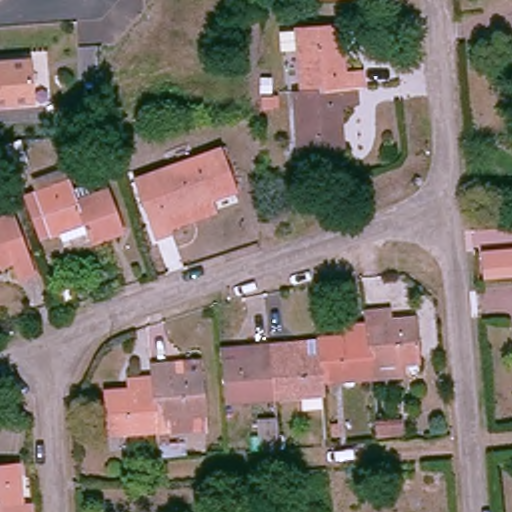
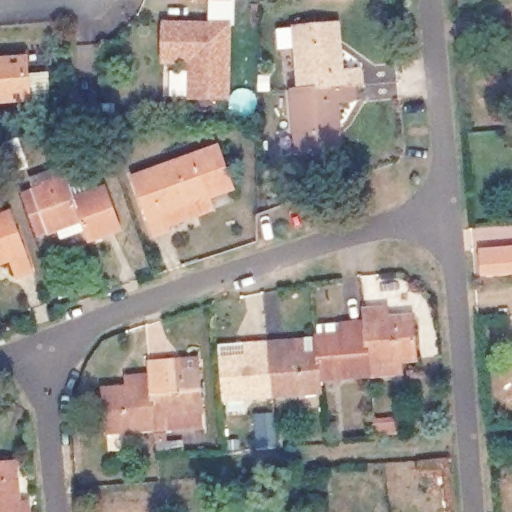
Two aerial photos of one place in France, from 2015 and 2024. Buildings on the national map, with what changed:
new [(237,2),(180,1),(180,0),(237,0),(237,2)]
new [(234,21),(233,101),(188,101),(190,65),(163,65),(164,20),(234,21)]
unchanged [(333,26),(339,25),(341,51),(343,70),(362,70),(364,85),(358,85),(299,90),(294,29),(333,26)]
unchanged [(31,99),(0,100),(0,60),(28,57),(31,99)]
unchanged [(338,150),(299,152),(293,91),(299,90),(358,85),(358,103),(339,104),(342,126),(344,150),(338,150)]
unchanged [(211,144),(228,188),(204,197),(187,153),(211,144)]
unchanged [(160,215),(165,229),(148,235),(126,175),(187,153),(204,197),(160,215)]
unchanged [(73,197),(82,222),(50,234),(32,190),(66,176),(73,197)]
unchanged [(106,186),(124,231),(91,244),(82,222),(73,197),(106,186)]
unchanged [(34,267),(19,274),(11,257),(0,261),(0,214),(11,210),(34,267)]
new [(481,277),(479,250),(512,247),(512,275),(481,277)]
unchanged [(365,323),(364,310),(389,308),(390,318),(413,318),(416,361),(369,364),(365,323)]
unchanged [(317,351),(317,337),(315,326),(341,325),(365,323),(369,364),(369,378),(320,381),(317,351)]
unchanged [(320,381),(321,395),(270,399),(265,341),(291,340),(293,351),(317,351),(320,381)]
unchanged [(218,357),(217,345),(244,342),(265,341),(270,399),(223,403),(218,357)]
unchanged [(173,361),(174,371),(199,370),(203,411),(155,415),(150,373),(150,363),(173,361)]
unchanged [(155,415),(155,430),(106,433),(104,392),(130,390),(129,375),(150,373),(155,415)]
unchanged [(253,440),(251,411),(272,409),(275,438),(253,440)]
unchanged [(21,505),(35,505),(35,512),(0,512),(0,458),(18,457),(21,505)]

